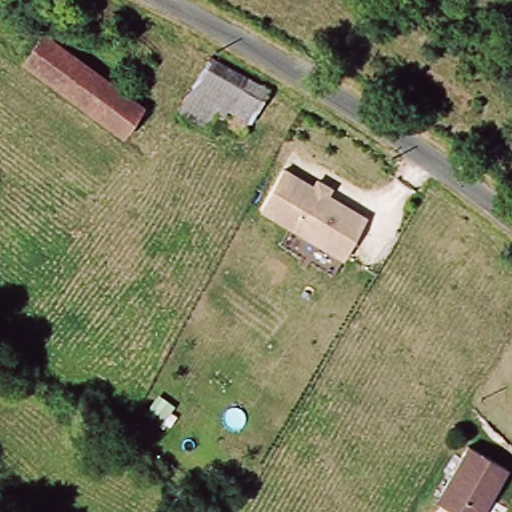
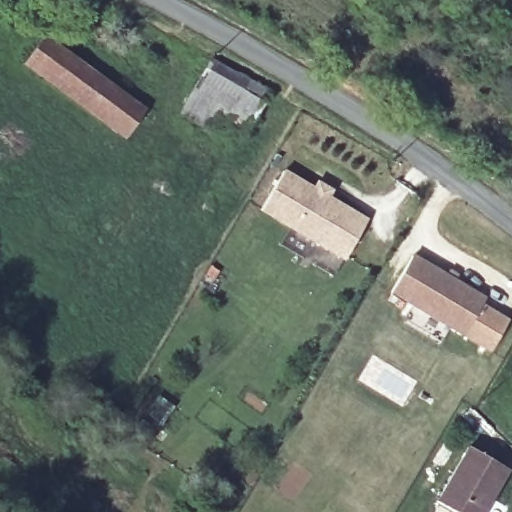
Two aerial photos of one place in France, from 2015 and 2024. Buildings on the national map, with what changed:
unchanged [(142,110),(120,140),(24,63),(47,35),(142,110)]
unchanged [(245,126),(223,110),(229,101),(202,80),(215,61),(264,96),(245,126)]
unchanged [(239,135),(217,121),(210,131),(182,111),(202,80),(229,101),(223,110),(245,126),(239,135)]
unchanged [(258,210),(285,167),(312,183),(316,177),(333,187),(330,194),(368,217),(341,261),(258,210)]
new [(485,297),(462,336),(387,293),(411,253),(485,297)]
unchanged [(491,512),(454,512),(435,498),(468,444),(505,466),(486,500),(496,505),(491,512)]

